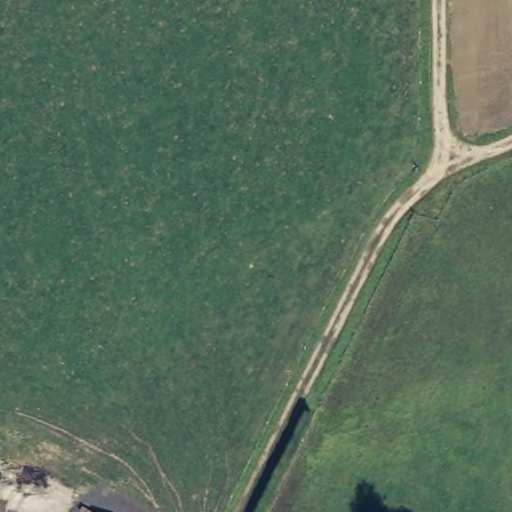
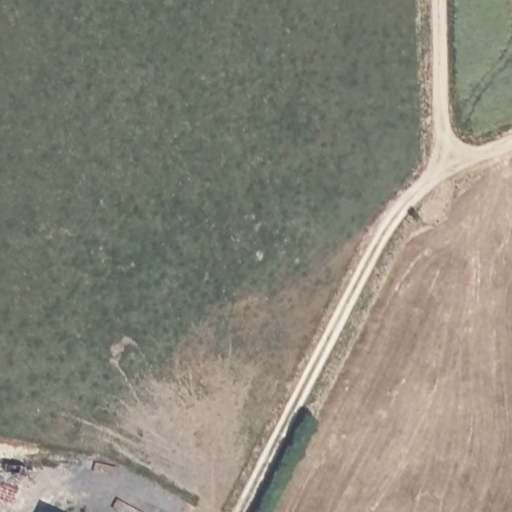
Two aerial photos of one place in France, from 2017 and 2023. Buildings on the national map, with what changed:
unchanged [(61,512),(50,512),(53,507),(61,512)]

